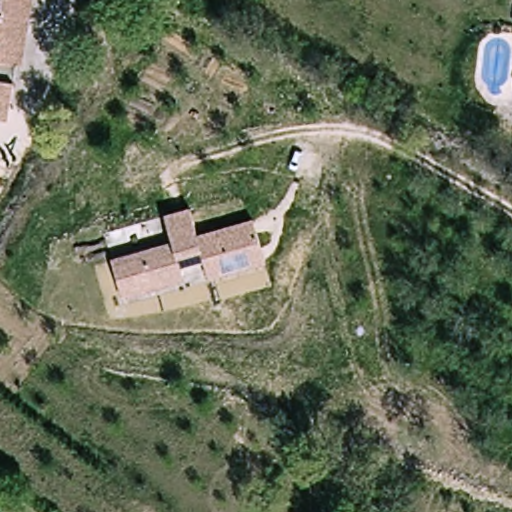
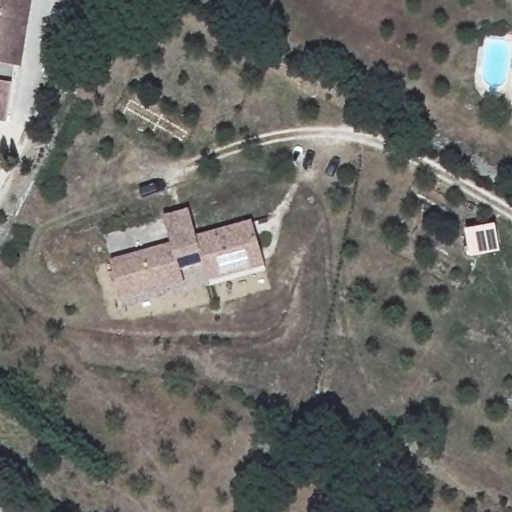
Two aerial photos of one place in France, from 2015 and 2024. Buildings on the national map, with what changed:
unchanged [(26,0),(35,1),(31,21),(27,44),(13,125),(0,123),(0,0),(26,0)]
unchanged [(203,284),(202,268),(178,270),(179,280),(114,285),(112,249),(175,244),(173,216),(199,214),(201,241),(260,237),(263,280),(203,284)]

